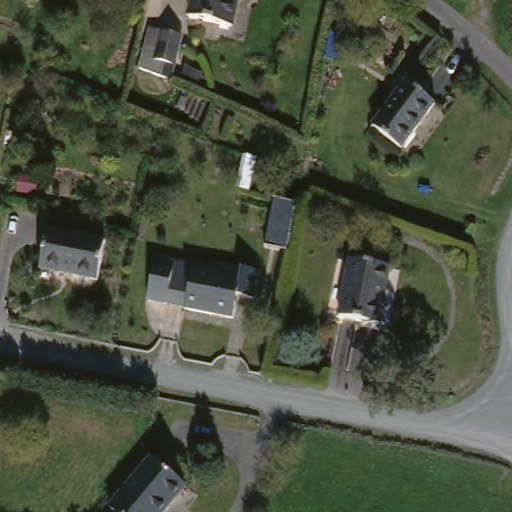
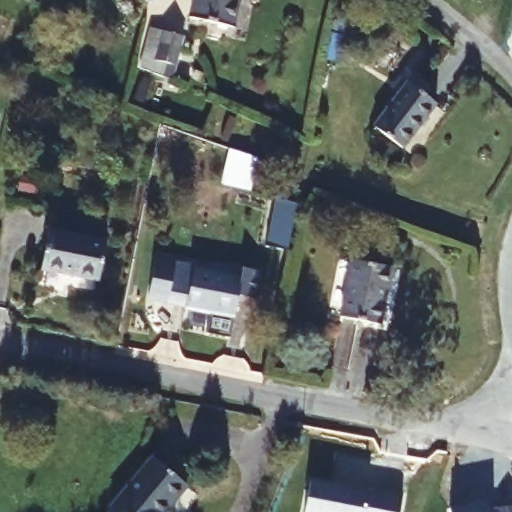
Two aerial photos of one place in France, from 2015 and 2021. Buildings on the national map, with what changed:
unchanged [(233,28),(190,18),(194,0),(239,0),(233,28)]
unchanged [(172,79),(140,71),(151,27),(184,36),(172,79)]
unchanged [(343,62),(329,59),(335,34),(349,38),(343,62)]
unchanged [(436,104),(402,149),(373,127),(407,82),(436,104)]
unchanged [(20,178),(39,180),(37,193),(19,190),(20,178)]
unchanged [(107,242),(99,281),(44,274),(50,234),(107,242)]
unchanged [(391,268),(380,325),(340,317),(351,260),(391,268)]
unchanged [(242,276),(234,318),(186,309),(186,307),(167,303),(174,263),(242,276)]
unchanged [(165,512),(116,512),(110,508),(152,458),(186,487),(165,512)]
new [(370,493),(366,512),(306,512),(312,481),(370,493)]

